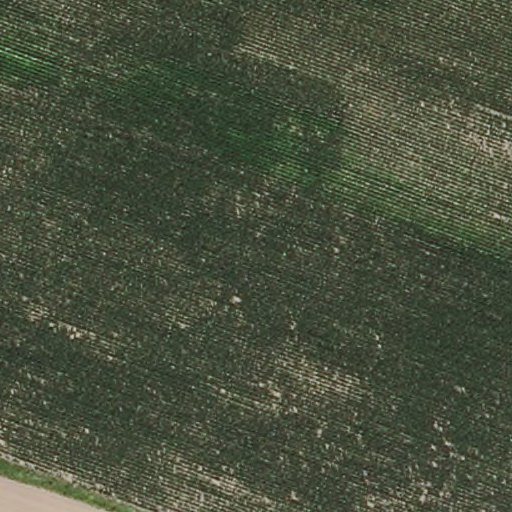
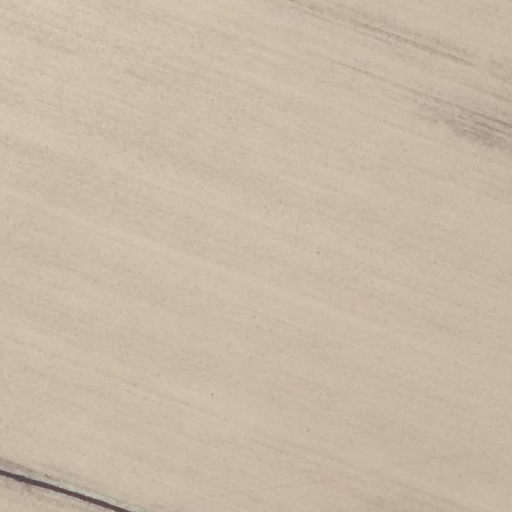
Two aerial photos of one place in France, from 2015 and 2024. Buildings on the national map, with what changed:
[]

